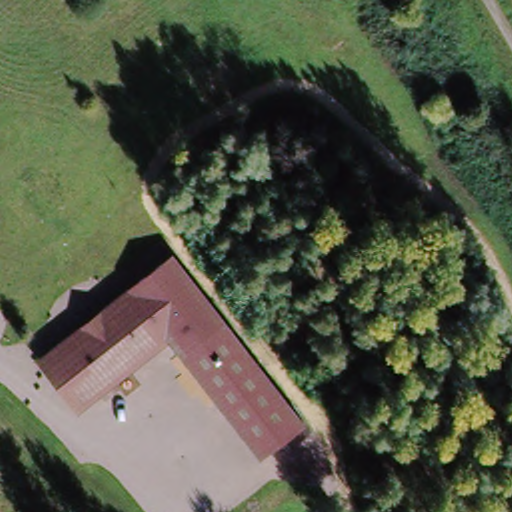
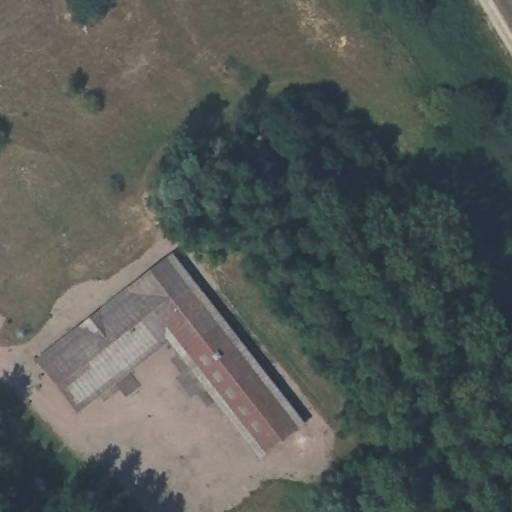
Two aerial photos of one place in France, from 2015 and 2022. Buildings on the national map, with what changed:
unchanged [(173,255),(305,424),(261,460),(166,342),(78,412),(36,361),(173,255)]

